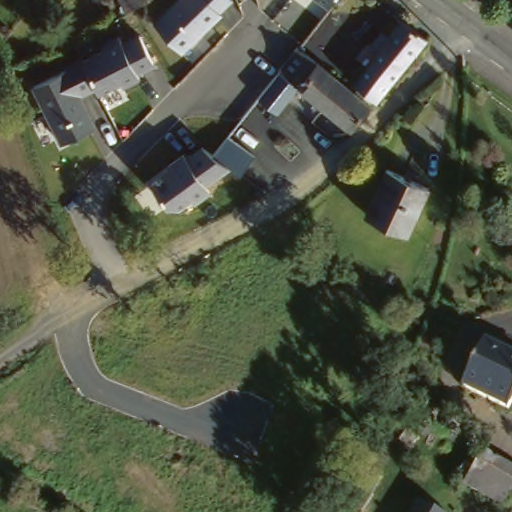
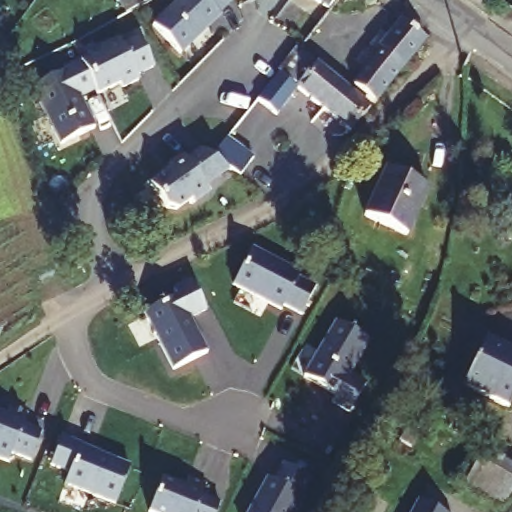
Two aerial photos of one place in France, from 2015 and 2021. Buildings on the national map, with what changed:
unchanged [(117,0),(131,0),(121,6),(117,0)]
unchanged [(182,0),(234,0),(244,11),(182,60),(152,26),(182,0)]
unchanged [(318,0),(334,0),(327,8),(318,0)]
unchanged [(286,57),(294,46),(308,57),(359,92),(363,87),(357,81),(406,15),(429,35),(362,121),(307,82),(296,74),(300,67),(286,57)]
unchanged [(31,86),(81,61),(79,56),(118,35),(122,42),(139,34),(154,65),(136,75),(139,81),(122,89),(119,85),(98,96),(94,89),(82,95),(97,128),(59,144),(31,86)]
unchanged [(283,116),(253,100),(281,63),(296,74),(307,82),(283,116)]
unchanged [(182,156),(185,159),(199,145),(214,157),(229,136),(255,155),(242,174),(229,168),(206,187),(210,192),(194,205),(189,201),(172,214),(153,179),(182,156)]
unchanged [(433,179),(413,227),(372,209),(394,162),(433,179)]
new [(284,306),(282,309),(234,285),(254,247),(299,270),(298,275),(318,285),(301,314),(284,306)]
new [(144,314),(177,297),(173,289),(193,279),(209,311),(191,318),(207,351),(173,373),(144,314)]
new [(370,341),(352,372),(368,382),(351,413),(331,402),(334,395),(303,375),(334,320),(370,341)]
unchanged [(512,350),(512,399),(511,401),(496,393),(469,381),(491,339),(512,350)]
new [(11,457),(8,464),(0,461),(0,413),(5,415),(9,404),(28,412),(24,424),(41,430),(29,464),(11,457)]
new [(117,506),(63,487),(67,474),(49,467),(61,438),(129,466),(117,506)]
unchanged [(456,472),(461,461),(471,466),(483,443),(512,459),(512,484),(505,501),(456,472)]
new [(295,512),(248,512),(264,478),(272,482),(283,462),(311,479),(295,512)]
new [(151,512),(163,478),(184,486),(188,476),(206,484),(203,494),(220,501),(216,512),(151,512)]
unchanged [(443,512),(410,512),(418,497),(443,512)]

